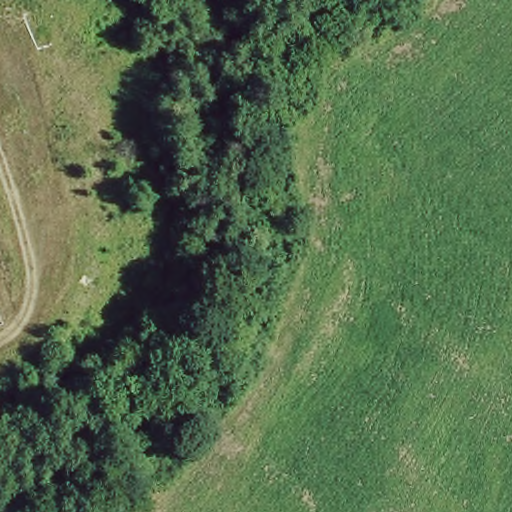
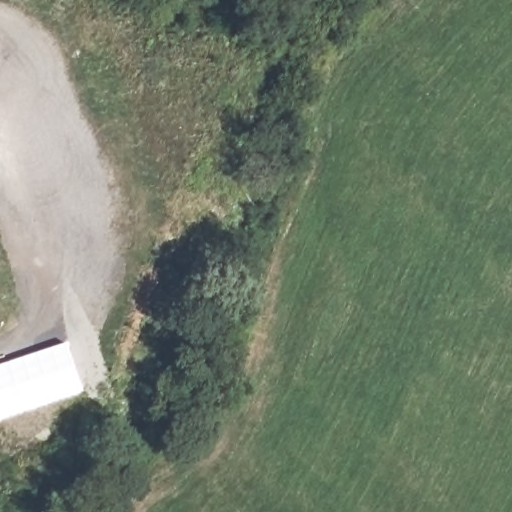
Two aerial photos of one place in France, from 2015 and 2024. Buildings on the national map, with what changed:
new [(67,341),(84,393),(0,420),(0,363),(67,341)]

